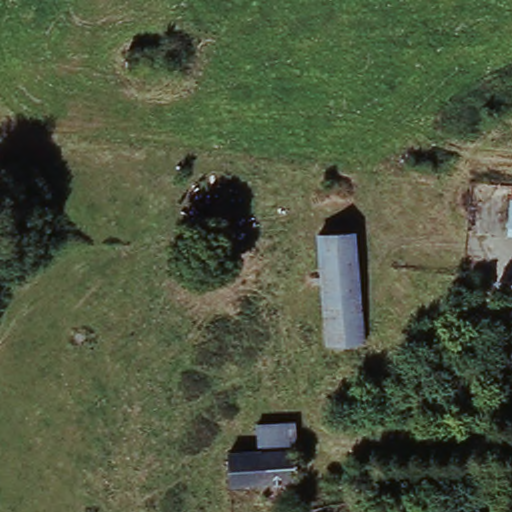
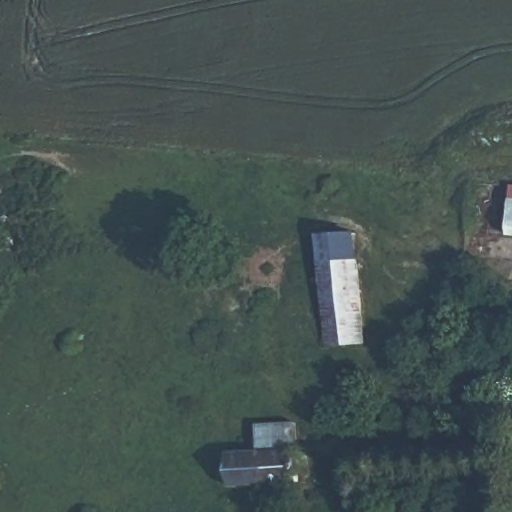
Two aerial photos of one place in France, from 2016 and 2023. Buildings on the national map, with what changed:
unchanged [(332,343),(320,258),(316,234),(353,229),(356,254),(367,338),(332,343)]
unchanged [(262,427),(301,427),(302,455),(261,456),(262,427)]
unchanged [(302,455),(302,487),(235,489),(236,454),(261,456),(302,455)]

